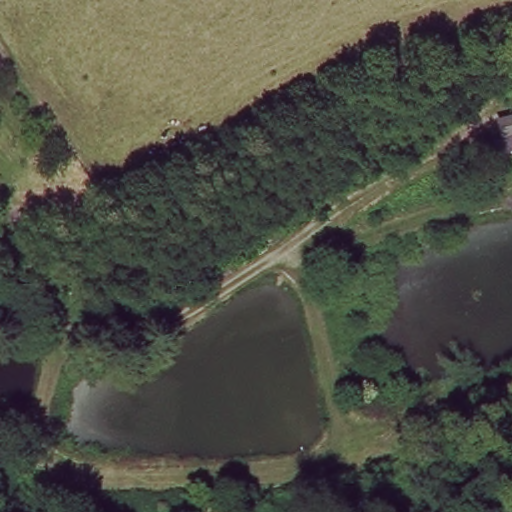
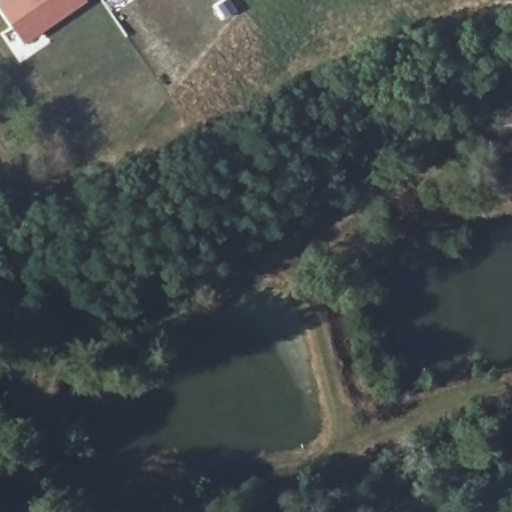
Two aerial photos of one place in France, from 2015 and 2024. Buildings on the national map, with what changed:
new [(85,0),(87,1),(25,44),(0,7),(0,0),(85,0)]
new [(512,112),(512,148),(495,153),(492,137),(499,135),(495,116),(512,112)]

